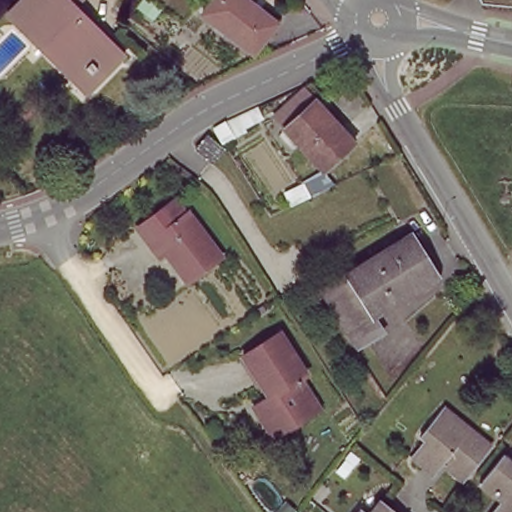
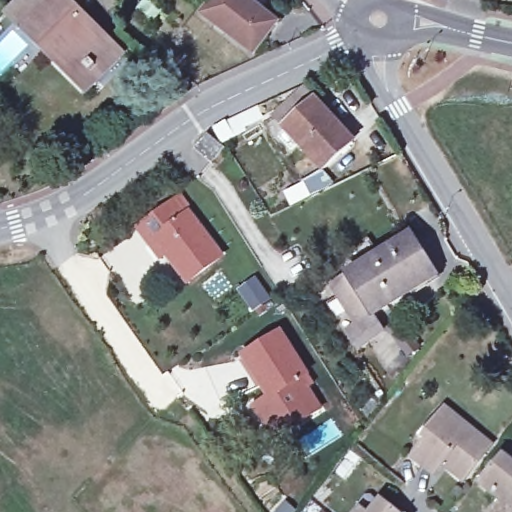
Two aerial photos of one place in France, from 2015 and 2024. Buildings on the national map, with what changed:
unchanged [(127,61),(85,96),(3,13),(18,0),(82,0),(79,3),(127,61)]
unchanged [(200,16),(211,0),(242,0),(274,23),(253,53),(200,16)]
unchanged [(325,168),(286,131),(311,104),(350,141),(325,168)]
unchanged [(250,126),(208,147),(198,130),(241,109),(250,126)]
unchanged [(185,284),(157,242),(151,246),(138,227),(176,201),(218,261),(185,284)]
unchanged [(440,281),(371,319),(388,335),(358,352),(321,290),(343,273),(410,233),(440,281)]
unchanged [(266,427),(256,412),(269,403),(243,363),(278,338),(306,381),(301,386),(320,415),(289,435),(276,443),(266,427)]
unchanged [(483,455),(462,481),(443,467),(433,478),(409,459),(422,441),(418,437),(441,409),(472,434),(467,441),(483,455)]
unchanged [(498,498),(481,485),(479,484),(501,458),(510,466),(512,468),(512,512),(486,512),(498,498)]
unchanged [(382,500),(397,512),(373,512),(382,500)]
unchanged [(364,510),(366,512),(362,512),(364,510)]

